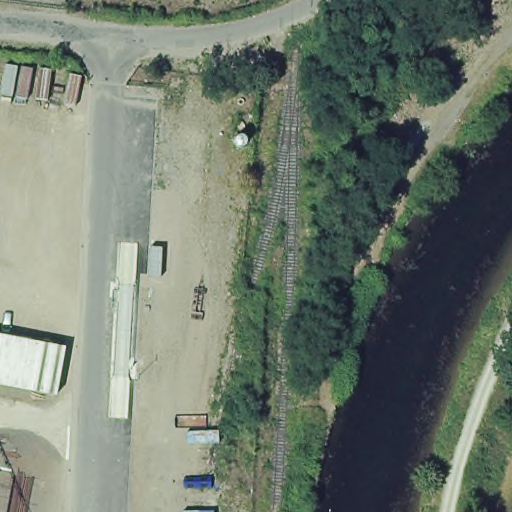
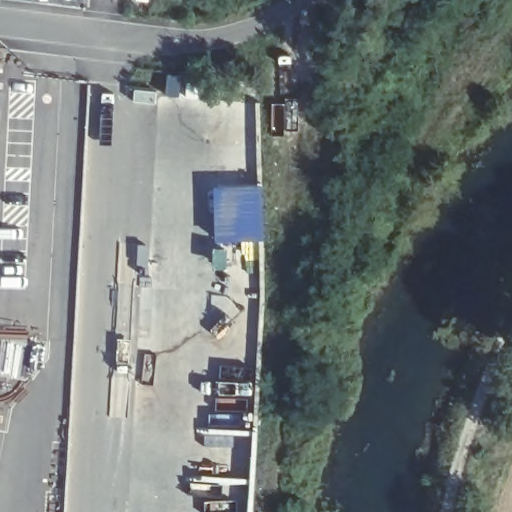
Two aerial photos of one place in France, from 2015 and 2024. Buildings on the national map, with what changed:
new [(262,184),(264,240),(259,241),(260,259),(243,260),(242,241),(214,241),(212,185),(262,184)]
unchanged [(56,396),(0,385),(0,335),(64,347),(56,396)]

